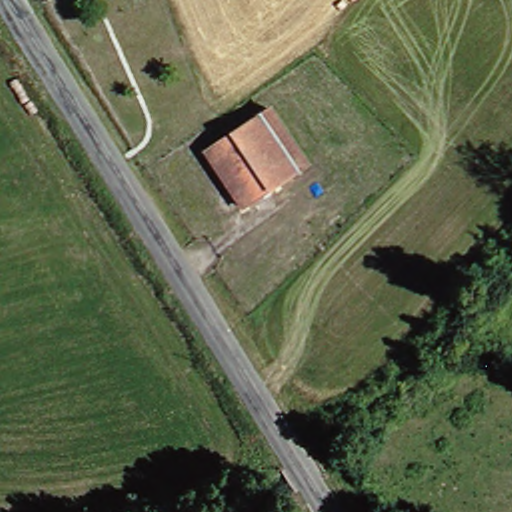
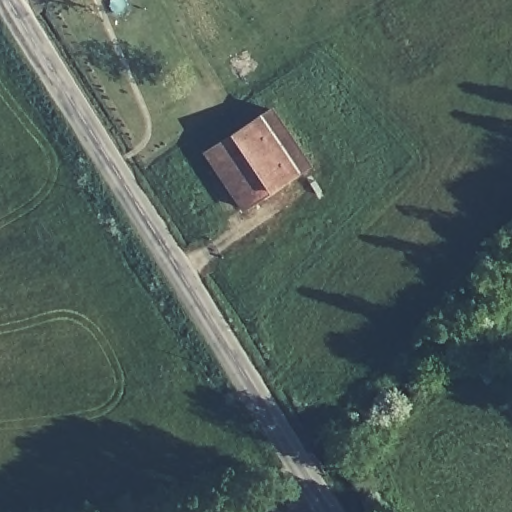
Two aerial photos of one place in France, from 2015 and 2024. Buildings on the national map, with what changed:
unchanged [(297,170),(237,214),(199,157),(259,114),(297,170)]

